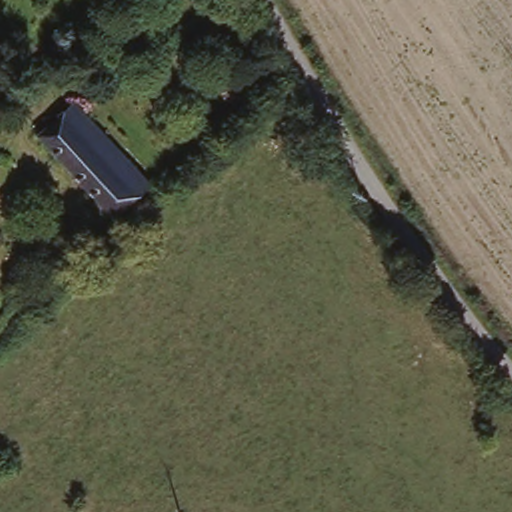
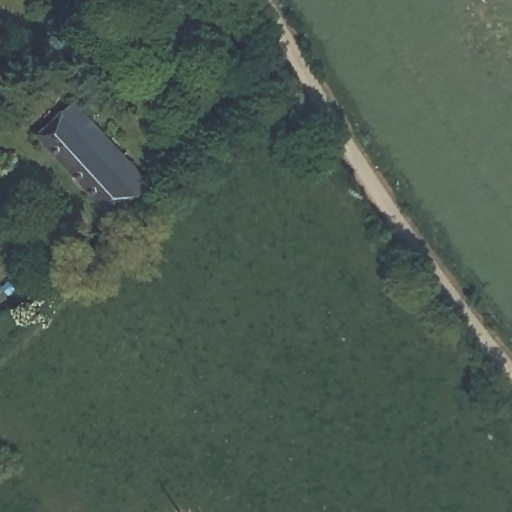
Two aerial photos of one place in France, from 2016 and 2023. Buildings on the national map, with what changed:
unchanged [(139,195),(115,218),(39,136),(74,102),(140,173),(151,184),(139,195)]

